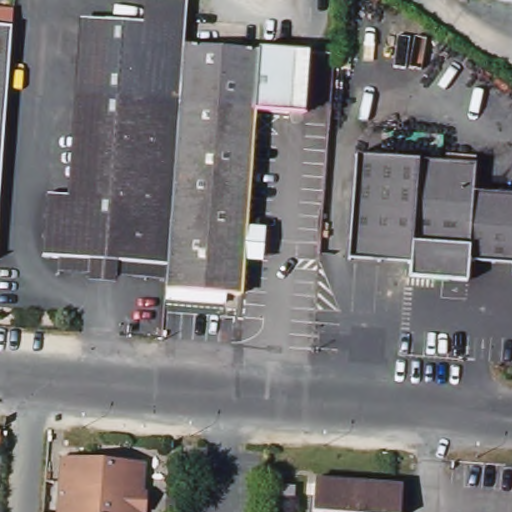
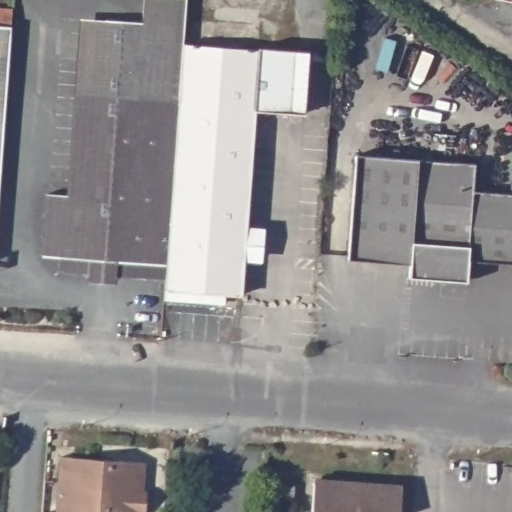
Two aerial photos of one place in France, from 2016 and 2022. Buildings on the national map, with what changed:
unchanged [(42,256),(47,194),(69,195),(92,197),(99,95),(104,20),(141,22),(143,0),(188,0),(186,21),(185,42),(182,79),(168,265),(59,257),(42,256)]
unchanged [(512,4),(494,0),(512,0),(512,4)]
unchanged [(82,18),(104,20),(99,95),(92,197),(69,195),(82,18)]
unchanged [(12,27),(0,188),(0,27),(12,27)]
unchanged [(265,259),(244,259),(240,294),(226,293),(225,303),(165,299),(167,281),(168,265),(182,79),(185,42),(212,44),(214,44),(260,48),(285,50),(310,52),(305,114),(280,112),(255,110),(246,231),(267,233),(265,259)]
unchanged [(512,264),(470,261),(467,282),(409,277),(410,263),(349,259),(357,156),(445,162),(445,156),(475,157),(475,165),(473,192),(512,195),(512,264)]
unchanged [(116,276),(116,283),(87,281),(88,275),(57,272),(59,257),(168,265),(167,281),(116,276)]
unchanged [(144,467),(142,497),(146,497),(145,512),(58,512),(61,461),(144,467)]
unchanged [(314,480),(401,488),(398,512),(328,512),(322,511),(311,511),(314,480)]
unchanged [(276,483),(297,486),(296,497),(275,496),(276,483)]
unchanged [(328,512),(322,512),(322,511),(328,512)]

